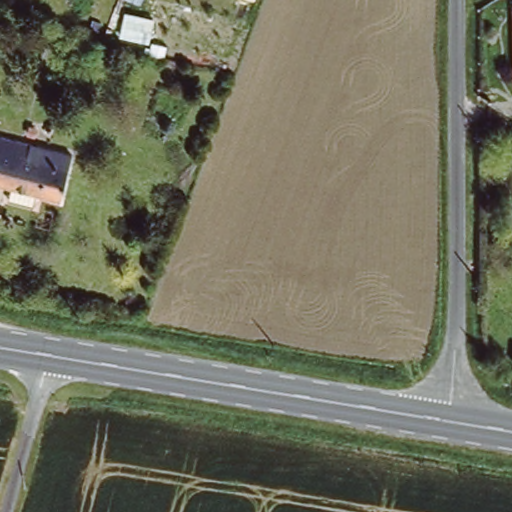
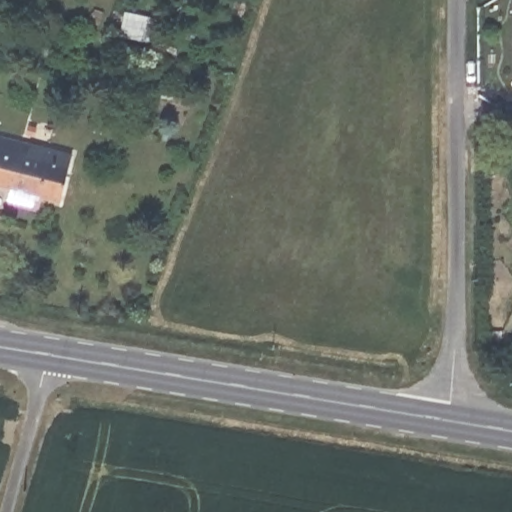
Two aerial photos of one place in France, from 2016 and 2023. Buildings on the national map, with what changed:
unchanged [(0,189),(0,143),(72,161),(60,205),(39,199),(35,213),(14,206),(17,194),(0,189)]

